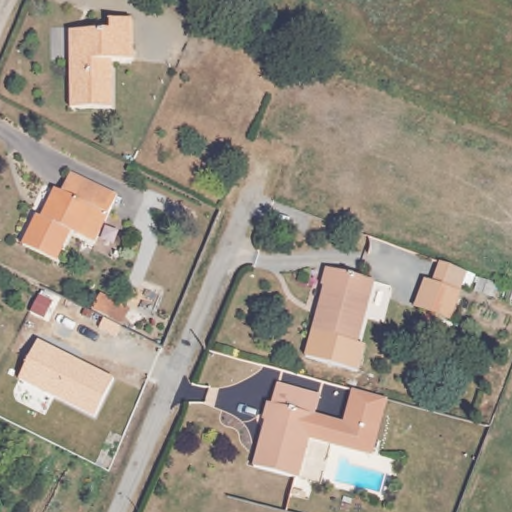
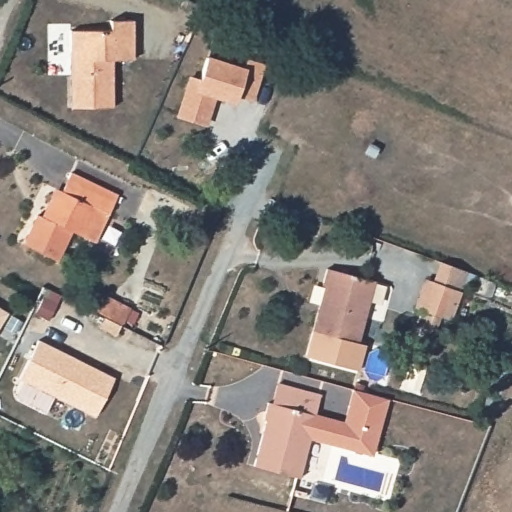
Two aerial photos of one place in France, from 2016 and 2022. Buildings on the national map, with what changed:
unchanged [(69,28),(108,27),(107,18),(132,17),(133,56),(111,57),(112,105),(70,104),(69,28)]
demolished [(244,88),(221,79),(226,64),(211,58),(216,42),(231,47),(234,42),(258,51),(244,88)]
new [(189,76),(201,78),(207,57),(243,69),(247,59),(265,64),(252,101),(235,94),(232,103),(216,98),(208,126),(176,116),(189,76)]
unchanged [(117,193),(95,239),(71,229),(56,258),(22,242),(35,213),(42,216),(55,188),(62,191),(70,171),(117,193)]
unchanged [(495,282),(489,298),(464,290),(446,338),(418,327),(422,315),(412,312),(423,279),(432,282),(439,263),(495,282)]
unchanged [(327,287),(323,286),(329,269),(374,281),(356,345),(313,333),(327,287)]
unchanged [(96,294),(124,307),(116,324),(88,310),(96,294)]
unchanged [(356,345),(357,341),(367,344),(360,370),(306,355),(313,333),(356,345)]
unchanged [(94,417),(19,378),(40,340),(114,376),(94,417)]
unchanged [(354,388),(388,398),(373,454),(310,439),(299,477),(255,465),(267,419),(265,419),(270,402),(272,403),(277,383),(319,395),(314,414),(345,422),(354,388)]

